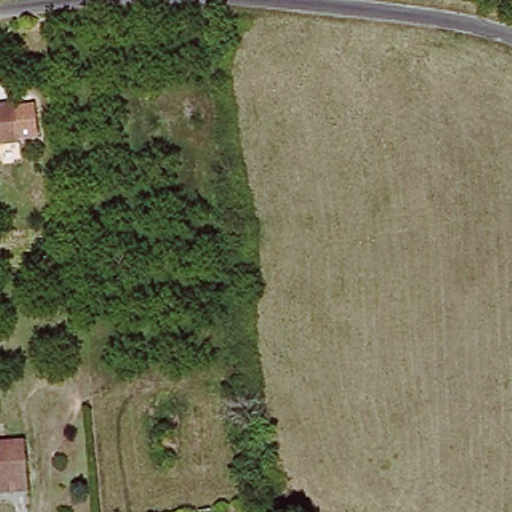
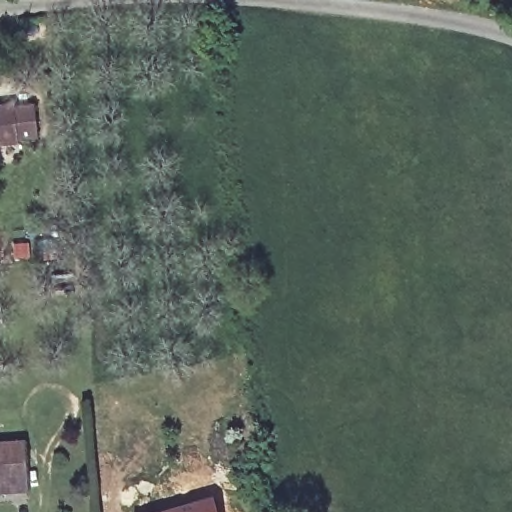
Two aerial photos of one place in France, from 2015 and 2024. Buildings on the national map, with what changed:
unchanged [(0,147),(0,105),(10,104),(13,146),(0,147)]
unchanged [(15,444),(21,490),(0,492),(0,489),(0,446),(15,444)]
new [(213,496),(217,512),(156,512),(213,496)]

